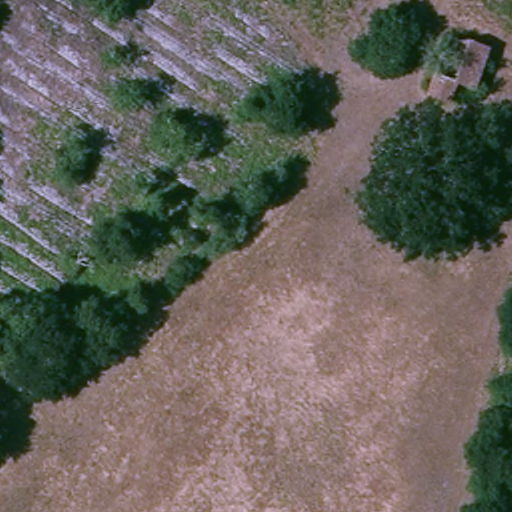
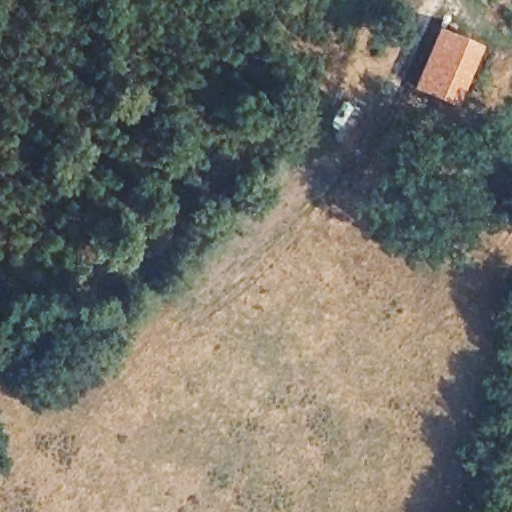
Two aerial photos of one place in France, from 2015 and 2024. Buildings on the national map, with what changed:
new [(437,27),(482,46),(456,109),(411,88),(437,27)]
demolished [(447,36),(487,50),(472,87),(453,79),(445,99),(426,91),(447,36)]

